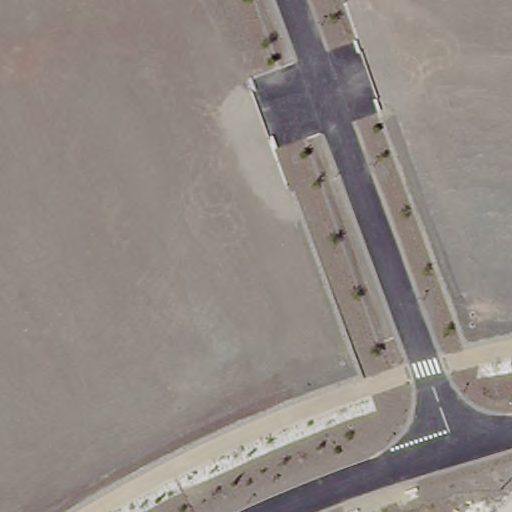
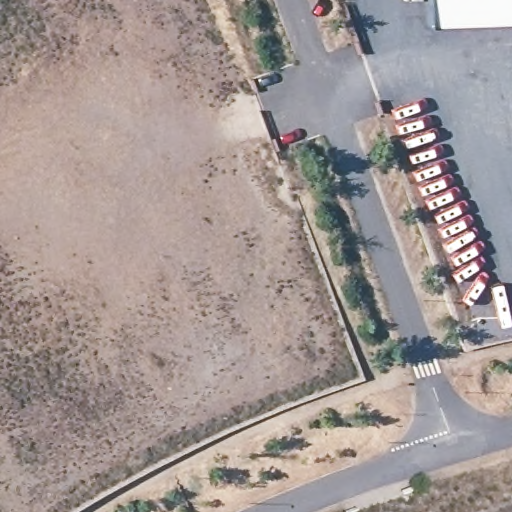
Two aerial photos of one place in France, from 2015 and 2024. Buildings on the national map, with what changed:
new [(512,0),(512,20),(429,23),(428,0),(512,0)]

